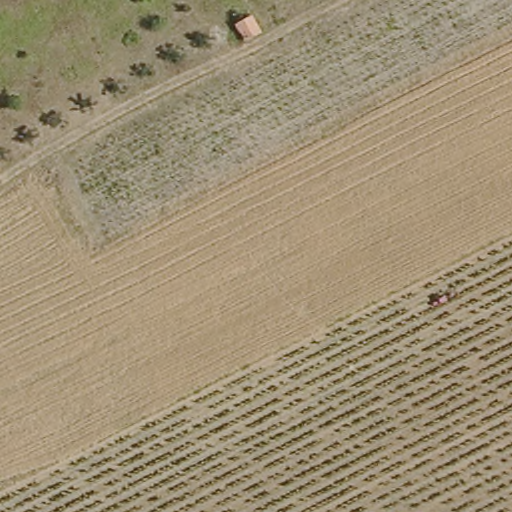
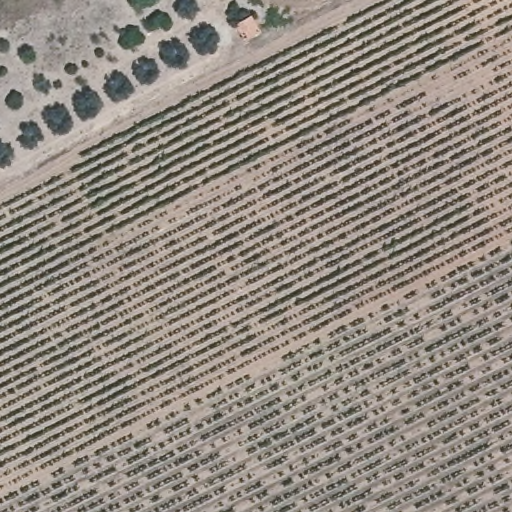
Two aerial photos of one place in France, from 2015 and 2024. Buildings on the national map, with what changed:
unchanged [(245,17),(255,34),(236,42),(228,25),(245,17)]

